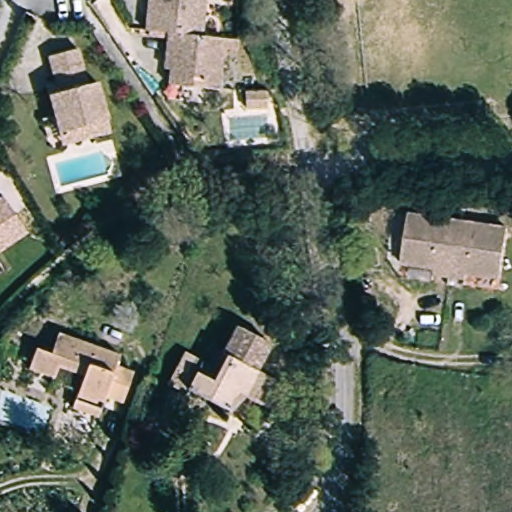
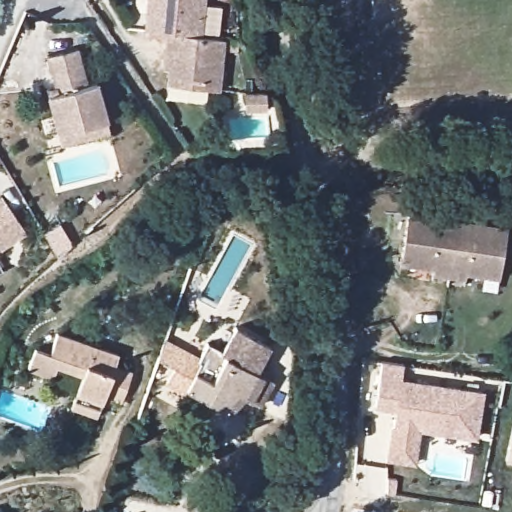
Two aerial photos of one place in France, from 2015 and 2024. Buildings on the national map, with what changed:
unchanged [(208,35),(178,34),(172,34),(153,34),(154,17),(159,17),(159,0),(209,0),(208,35)]
unchanged [(178,34),(208,35),(227,35),(226,87),(177,87),(177,50),(172,50),(172,34),(178,34)]
unchanged [(81,56),(91,93),(104,90),(115,128),(66,141),(56,103),(65,100),(55,63),(81,56)]
unchanged [(245,82),(265,79),(268,95),(248,99),(245,82)]
unchanged [(12,197),(32,235),(17,243),(0,252),(0,204),(12,197)]
unchanged [(421,271),(423,256),(398,253),(405,211),(456,216),(449,275),(421,271)]
unchanged [(456,216),(504,221),(500,268),(468,265),(466,277),(449,275),(456,216)]
unchanged [(239,323),(272,342),(255,369),(223,349),(239,323)]
unchanged [(48,375),(26,369),(35,346),(48,352),(55,335),(105,350),(115,355),(107,373),(128,378),(120,404),(100,401),(93,416),(68,407),(74,390),(46,383),(48,375)]
unchanged [(244,418),(232,412),(222,404),(191,384),(186,392),(167,379),(181,352),(211,370),(223,349),(255,369),(270,378),(281,386),(267,411),(257,403),(249,419),(244,418)]
new [(404,362),(401,377),(484,389),(475,438),(420,431),(414,463),(386,459),(391,422),(394,422),(395,408),(373,406),(380,358),(404,362)]
new [(512,419),(512,460),(504,458),(512,419)]

